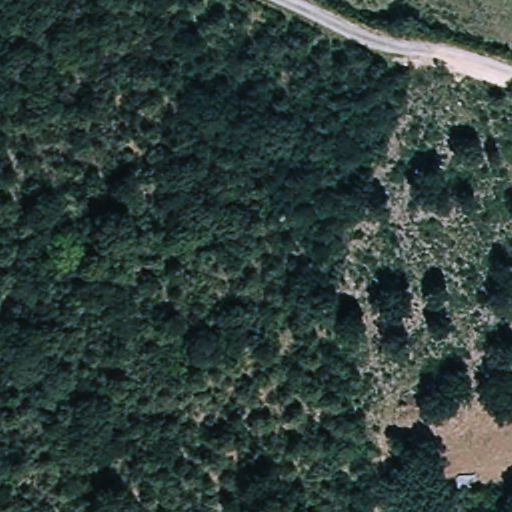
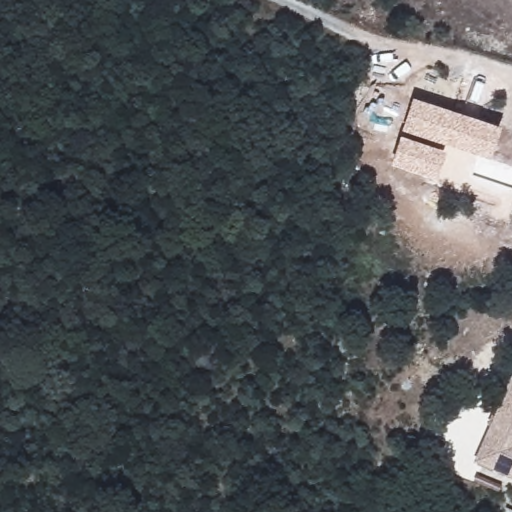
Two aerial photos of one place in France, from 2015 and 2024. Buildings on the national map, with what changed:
new [(490,160),(447,145),(445,150),(436,180),(392,166),(401,136),(413,99),(501,129),(490,160)]
new [(512,375),(512,479),(473,461),(512,375)]

